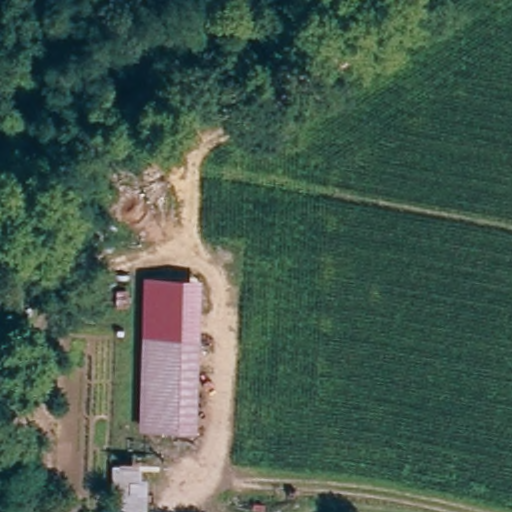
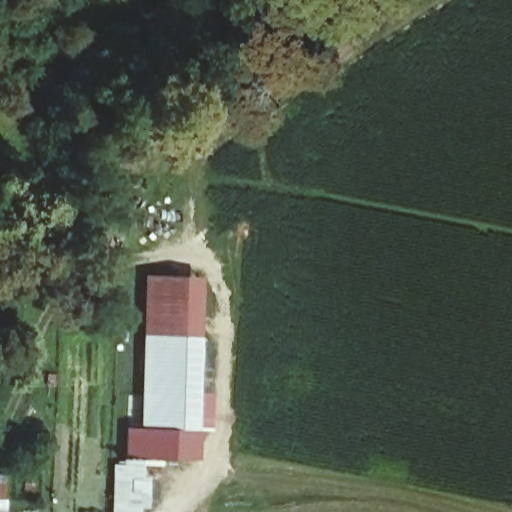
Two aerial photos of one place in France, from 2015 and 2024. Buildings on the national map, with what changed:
unchanged [(144,335),(145,274),(198,275),(198,335),(144,335)]
unchanged [(199,424),(178,423),(145,423),(144,335),(198,335),(199,424)]
unchanged [(177,463),(154,463),(130,464),(129,423),(145,423),(178,423),(177,463)]
unchanged [(121,512),(120,464),(130,464),(154,463),(154,512),(121,512)]

